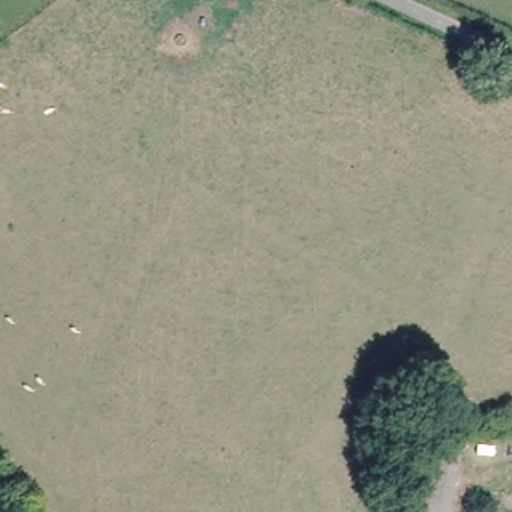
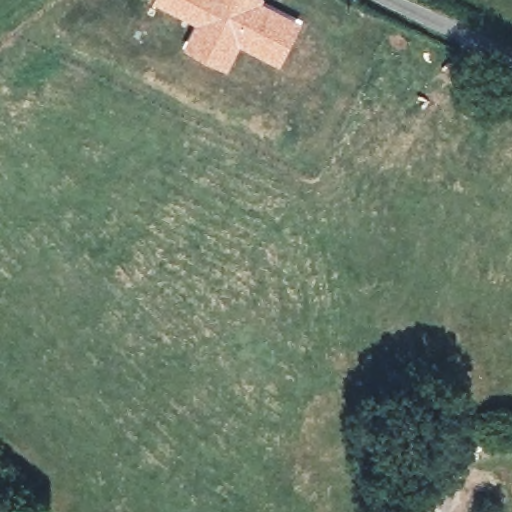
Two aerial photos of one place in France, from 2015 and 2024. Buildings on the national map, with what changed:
new [(301,18),(279,64),(239,45),(226,68),(182,46),(193,23),(154,0),(265,0),(301,18)]
new [(435,503),(436,471),(456,471),(455,500),(451,500),(451,512),(420,512),(420,503),(435,503)]
demolished [(456,479),(450,512),(416,512),(423,474),(456,479)]

